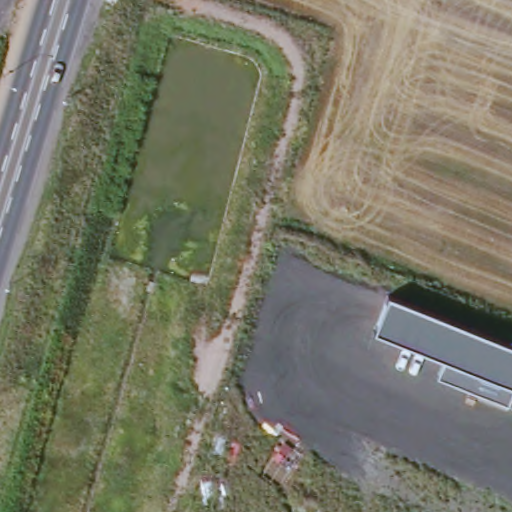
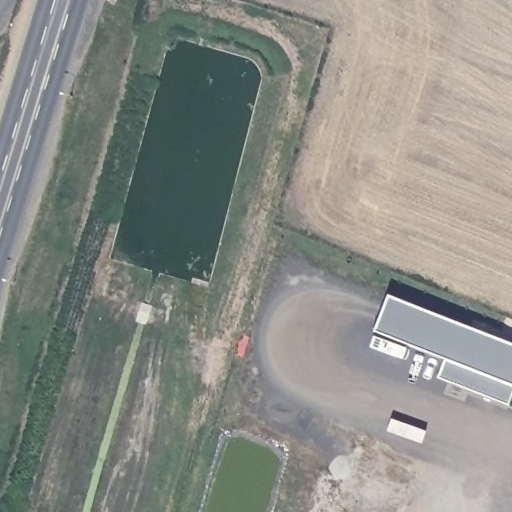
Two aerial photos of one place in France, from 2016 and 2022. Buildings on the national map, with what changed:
unchanged [(508,402),(438,375),(444,358),(374,330),(388,295),(512,345),(512,391),(508,402)]

